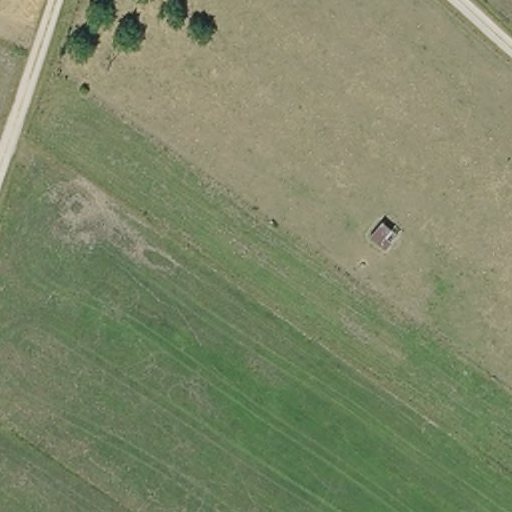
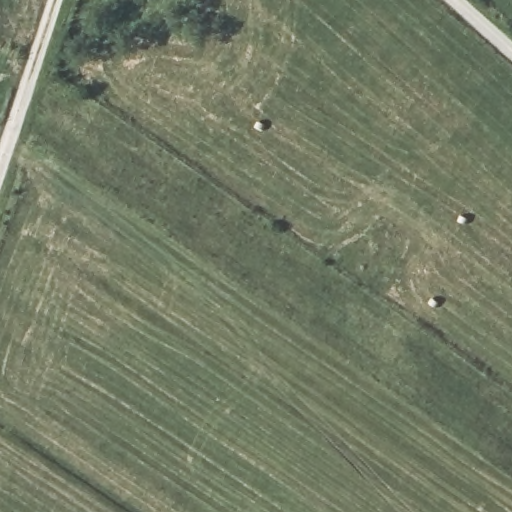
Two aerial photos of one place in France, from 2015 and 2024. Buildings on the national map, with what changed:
unchanged [(365,241),(376,226),(396,241),(385,257),(365,241)]

